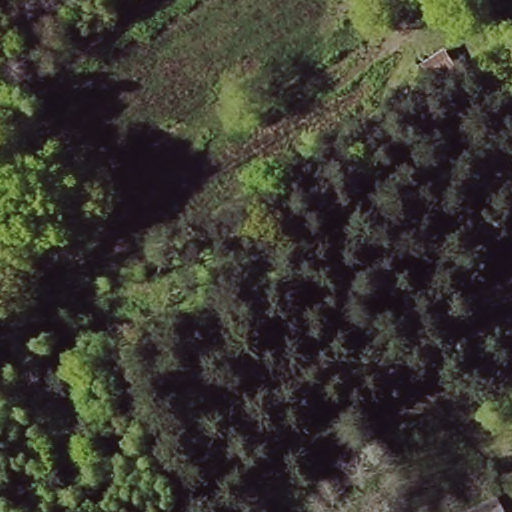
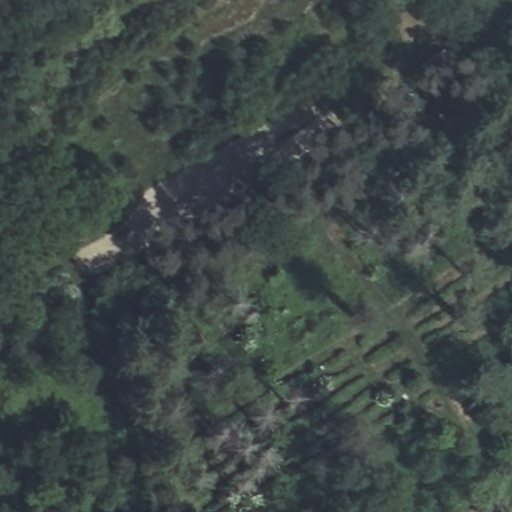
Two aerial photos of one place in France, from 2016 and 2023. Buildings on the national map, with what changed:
unchanged [(438,56),(455,73),(426,94),(415,75),(438,56)]
unchanged [(502,512),(471,512),(496,499),(502,512)]

